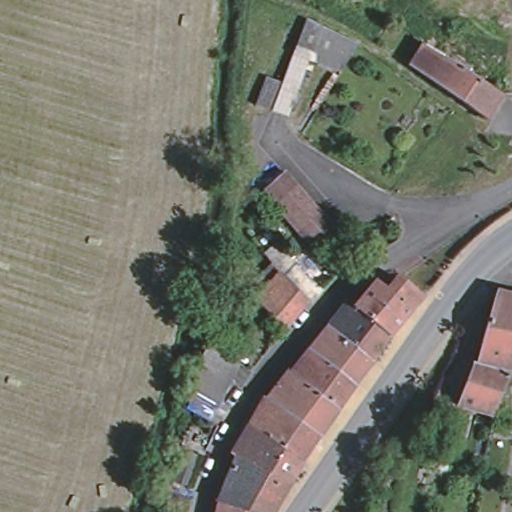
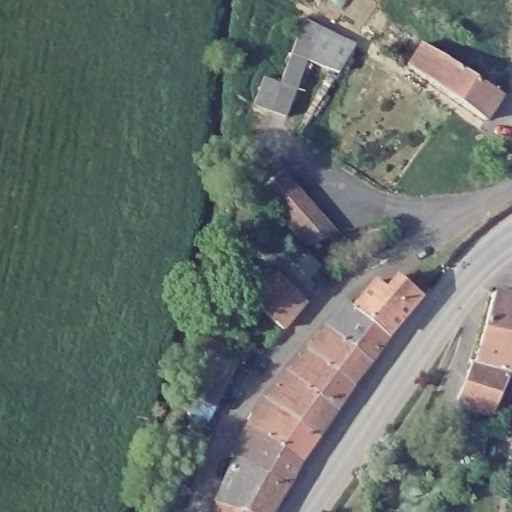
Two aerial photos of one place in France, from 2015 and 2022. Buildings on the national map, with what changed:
unchanged [(271,111),(281,82),(292,54),(306,19),(323,27),(358,45),(341,73),(309,61),(298,89),(287,117),(271,111)]
unchanged [(439,27),(494,64),(484,86),(421,46),(439,27)]
unchanged [(406,67),(421,46),(484,86),(486,86),(499,95),(482,121),(406,67)]
unchanged [(271,111),(254,105),(265,76),(281,82),(271,111)]
unchanged [(284,220),(273,206),(265,196),(262,194),(285,174),(296,187),(308,201),(319,214),(336,235),(307,247),(296,233),(284,220)]
unchanged [(266,295),(257,287),(273,269),(289,261),(311,283),(309,286),(314,291),(304,301),(309,306),(301,316),(286,333),(256,306),(266,295)]
unchanged [(393,278),(417,298),(406,311),(385,337),(349,307),(351,306),(371,282),(383,292),(393,278)]
unchanged [(499,372),(474,365),(474,362),(476,363),(489,316),(496,292),(512,295),(512,375),(499,372)]
unchanged [(349,307),(385,337),(366,361),(324,327),(345,302),(351,306),(349,307)]
unchanged [(306,350),(324,327),(366,361),(350,384),(306,350)]
unchanged [(196,384),(201,364),(208,347),(213,350),(216,342),(231,350),(228,357),(239,363),(231,380),(223,397),(218,408),(204,402),(193,396),(196,384)]
unchanged [(306,350),(350,384),(334,407),(288,373),(306,350)]
unchanged [(334,407),(314,437),(264,401),(286,372),(288,373),(334,407)]
unchanged [(297,462),(244,427),(261,398),(264,401),(314,437),(297,462)]
unchanged [(228,456),(244,427),(297,462),(284,483),(233,458),(228,456)]
unchanged [(221,486),(233,458),(284,483),(271,508),(269,512),(212,512),(214,503),(221,486)]

